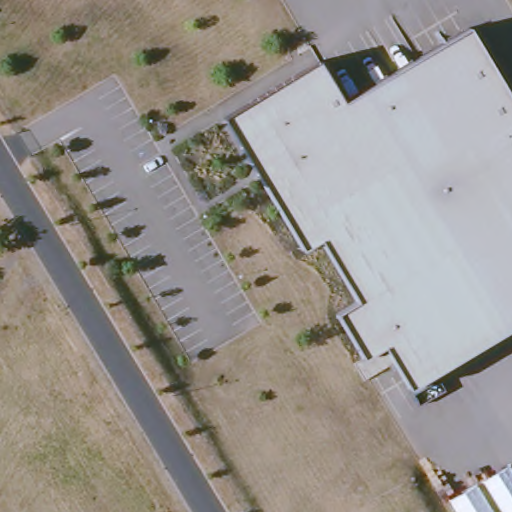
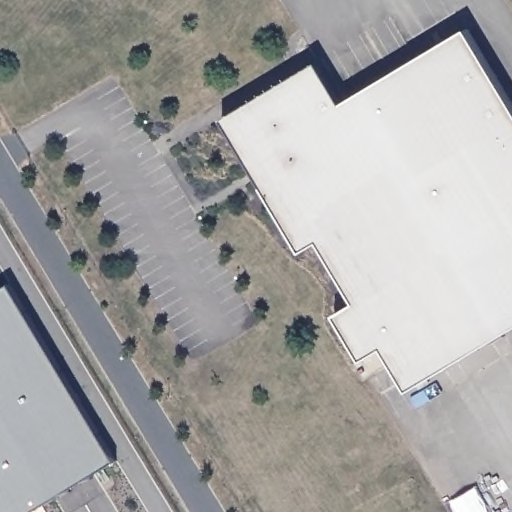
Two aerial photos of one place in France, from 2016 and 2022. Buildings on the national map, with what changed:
unchanged [(385,347),(365,360),(337,315),(357,302),(320,241),(304,251),(223,118),(320,60),(345,101),(470,26),(512,95),(512,329),(411,390),(385,347)]
new [(29,512),(0,512),(0,290),(5,287),(109,466),(29,512)]

